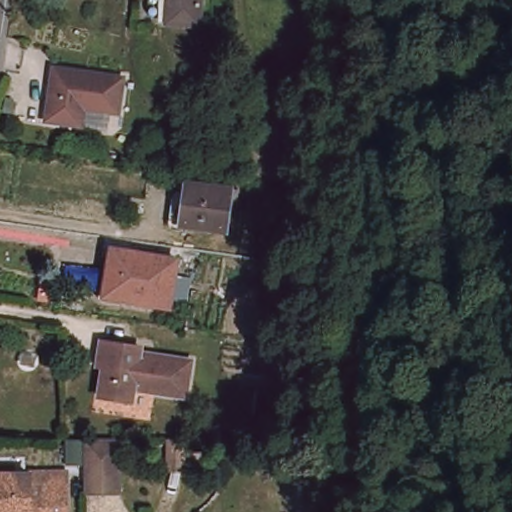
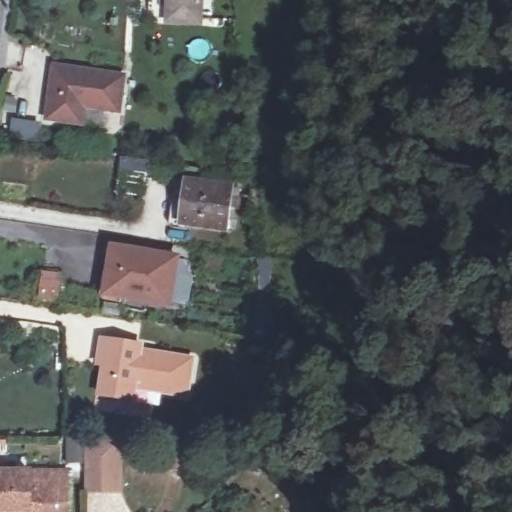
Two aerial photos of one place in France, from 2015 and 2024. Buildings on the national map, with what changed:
unchanged [(200,28),(170,23),(173,0),(204,0),(200,28)]
unchanged [(125,79),(120,113),(87,107),(84,125),(49,121),(56,68),(125,79)]
unchanged [(232,191),(225,233),(182,226),(187,192),(188,184),(232,191)]
unchanged [(180,262),(171,310),(104,298),(112,251),(180,262)]
unchanged [(143,346),(142,355),(155,356),(156,352),(194,360),(187,397),(136,389),(135,402),(100,395),(105,365),(100,363),(104,339),(143,346)]
unchanged [(120,436),(120,491),(85,491),(85,436),(120,436)]
unchanged [(189,442),(189,474),(174,473),(174,442),(189,442)]
unchanged [(0,505),(0,468),(32,467),(32,480),(67,479),(68,512),(15,512),(15,505),(0,505)]

